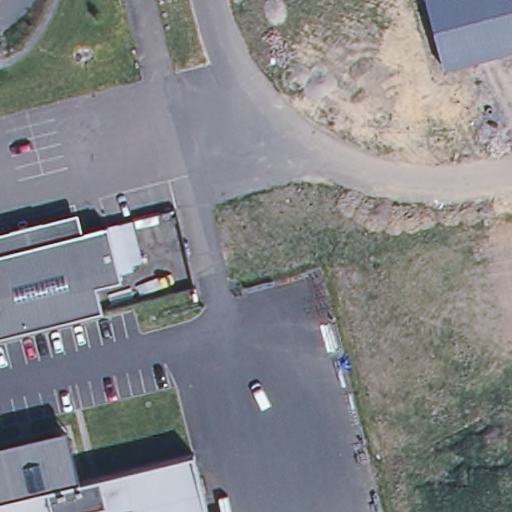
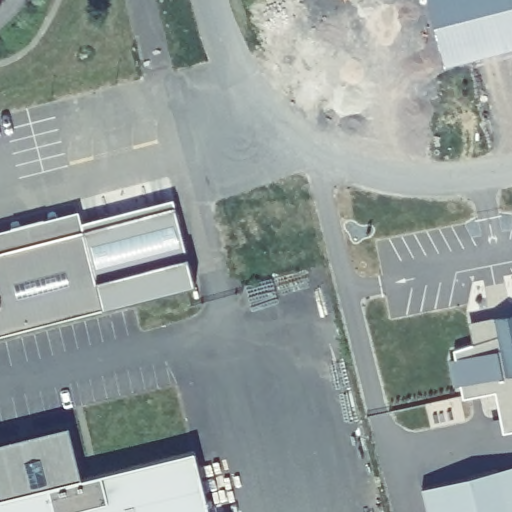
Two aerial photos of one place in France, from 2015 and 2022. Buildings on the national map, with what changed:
unchanged [(444,69),(427,0),(512,0),(512,51),(444,69)]
unchanged [(83,230),(109,223),(119,261),(123,277),(98,284),(99,291),(104,308),(0,335),(0,230),(78,210),(83,230)]
new [(505,433),(497,391),(464,398),(461,385),(454,386),(449,361),(457,359),(454,351),(473,344),(469,321),(494,316),(512,312),(512,432),(505,433)]
unchanged [(73,442),(83,483),(194,456),(208,512),(0,512),(0,446),(57,433),(73,442)]
new [(429,512),(423,488),(512,466),(512,512),(429,512)]

